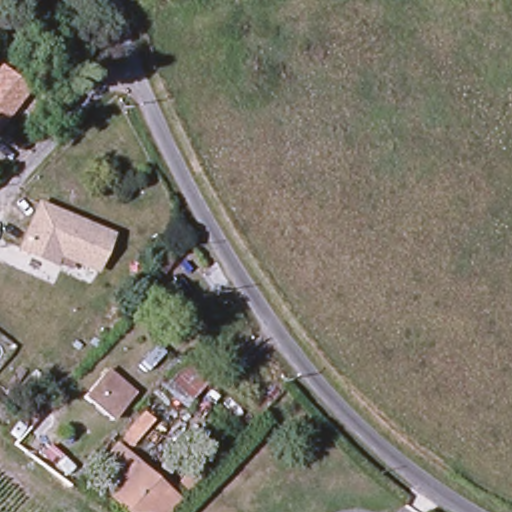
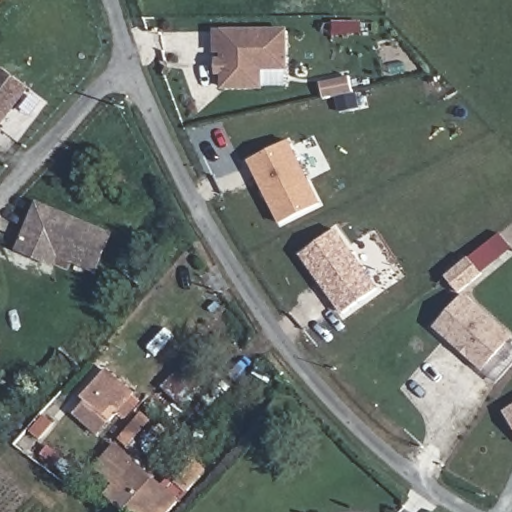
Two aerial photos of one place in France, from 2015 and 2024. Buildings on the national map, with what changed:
new [(289,29),(289,71),(265,72),(265,89),(223,91),(222,76),(217,76),(216,58),(223,58),(222,54),(213,54),(213,29),(289,29)]
unchanged [(0,124),(0,71),(3,68),(29,90),(0,124)]
new [(249,161),(291,140),(323,205),(282,226),(249,161)]
unchanged [(104,238),(96,257),(89,275),(83,272),(61,261),(52,256),(48,266),(15,249),(36,205),(88,230),(104,238)]
new [(379,289),(343,315),(300,255),(337,230),(379,289)]
new [(512,248),(512,250),(488,270),(475,255),(500,234),(512,248)]
new [(473,252),(489,272),(466,291),(450,271),(473,252)]
new [(512,339),(487,367),(438,325),(465,293),(512,335),(512,339)]
unchanged [(132,400),(110,427),(80,401),(102,374),(132,400)]
new [(512,407),(512,422),(505,412),(512,407)]
unchanged [(168,497),(156,512),(126,512),(117,504),(124,493),(99,473),(114,451),(168,497)]

